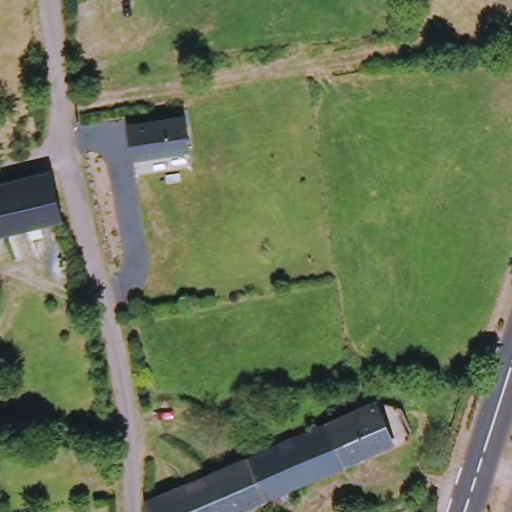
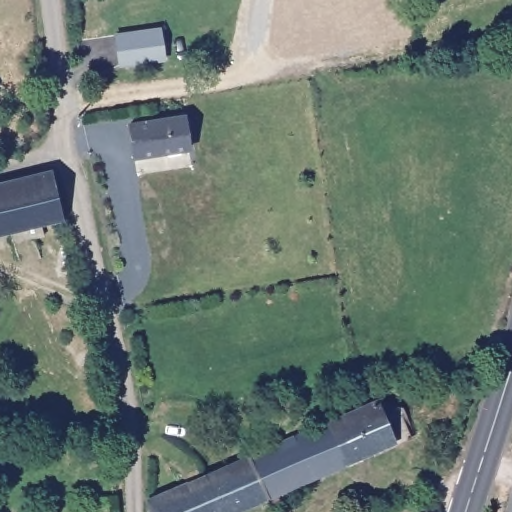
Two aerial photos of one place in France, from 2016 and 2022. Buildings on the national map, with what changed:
new [(165,62),(119,69),(115,35),(160,27),(165,62)]
unchanged [(185,119),(190,152),(134,160),(129,127),(185,119)]
unchanged [(60,221),(0,235),(0,184),(49,172),(60,221)]
unchanged [(250,457),(377,402),(386,421),(403,412),(414,438),(397,446),(282,493),(286,503),(275,508),(269,501),(250,457)]
unchanged [(149,512),(148,501),(250,457),(269,501),(243,512),(149,512)]

